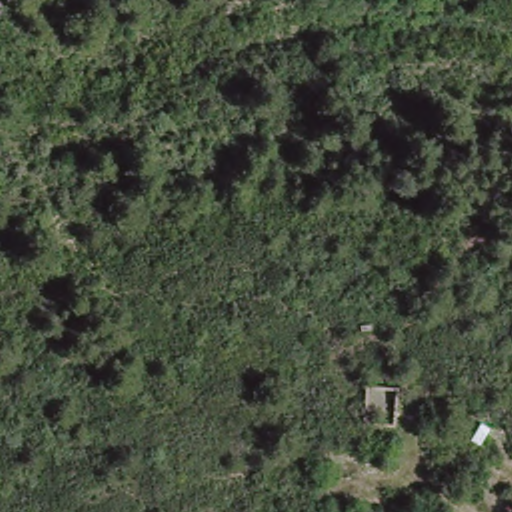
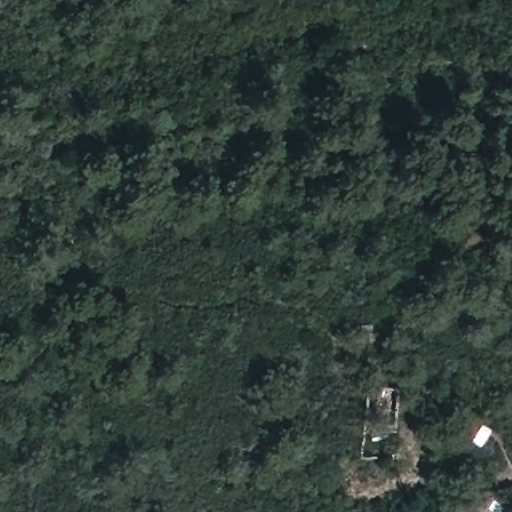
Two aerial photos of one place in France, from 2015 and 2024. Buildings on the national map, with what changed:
[]

